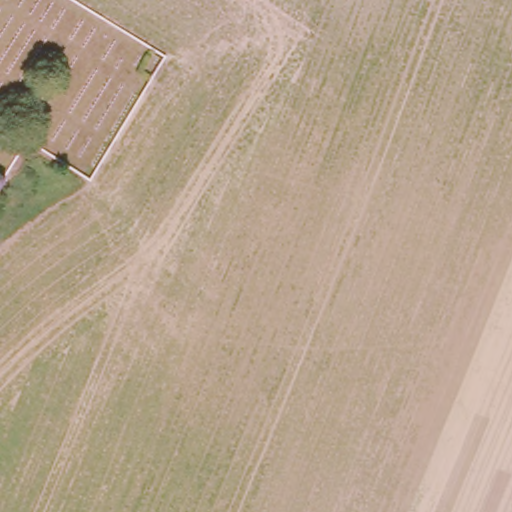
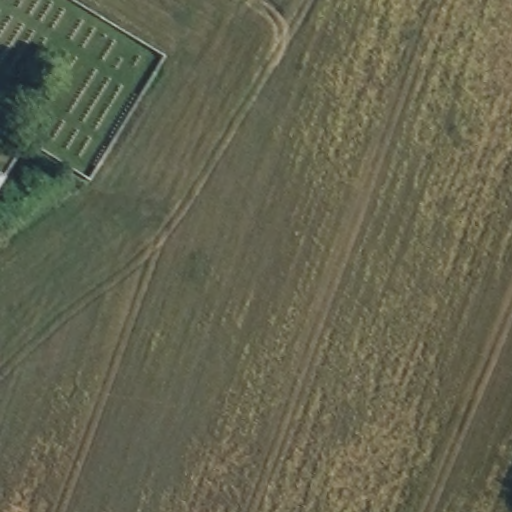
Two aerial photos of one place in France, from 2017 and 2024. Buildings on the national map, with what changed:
unchanged [(0,173),(4,176),(7,178),(0,189),(0,173)]

